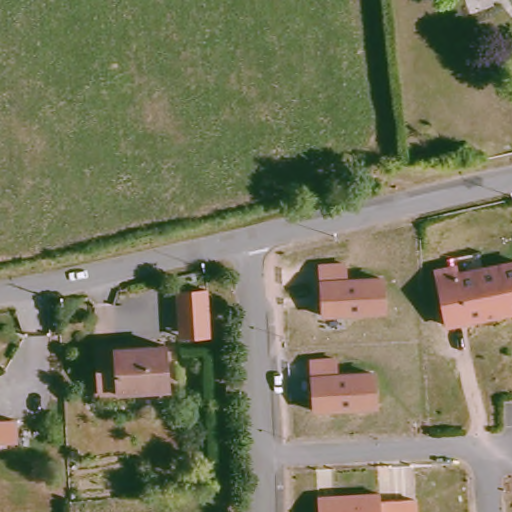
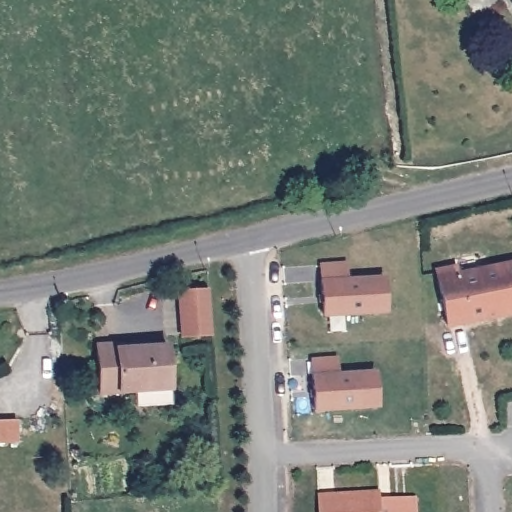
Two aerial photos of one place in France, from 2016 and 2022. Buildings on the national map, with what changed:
unchanged [(499,309),(485,311),(485,315),(446,322),(436,267),(456,263),(457,271),(512,260),(512,310),(499,312),(499,309)]
unchanged [(323,320),(321,283),(385,279),(387,318),(323,320)]
unchanged [(182,338),(177,293),(207,290),(210,319),(212,335),(182,338)]
unchanged [(172,390),(102,392),(100,340),(120,340),(148,339),(149,344),(170,344),(172,390)]
unchanged [(315,415),(312,377),(375,374),(378,413),(315,415)]
unchanged [(14,443),(0,443),(0,420),(12,419),(14,443)]
unchanged [(383,512),(321,512),(320,498),(382,495),(383,512)]

